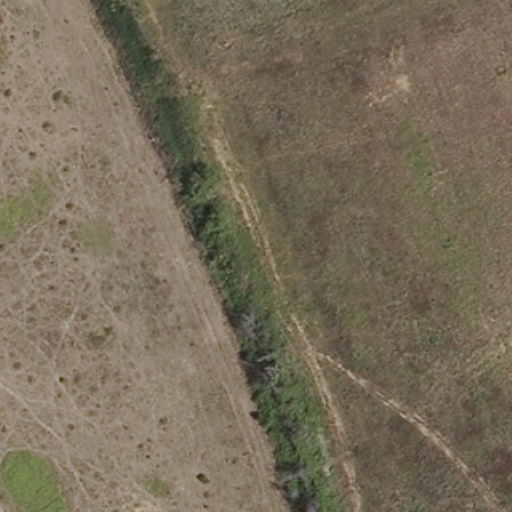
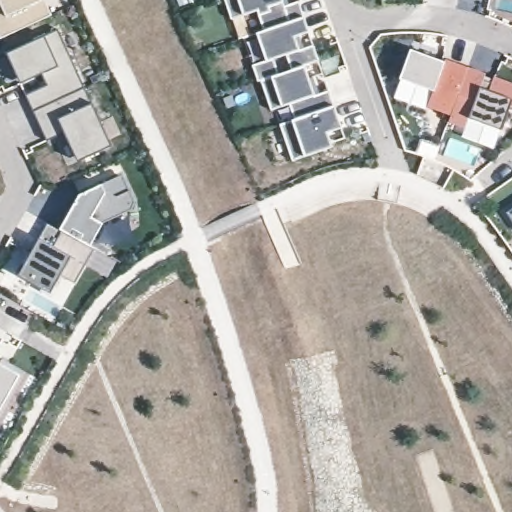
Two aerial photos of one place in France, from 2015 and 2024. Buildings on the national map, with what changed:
new [(44,0),(51,15),(44,19),(0,39),(0,0),(44,0)]
new [(298,1),(304,17),(264,30),(257,11),(231,19),(224,0),(282,0),(284,6),(298,1)]
new [(304,17),(309,34),(295,39),(296,42),(263,53),(256,33),(304,17)]
new [(39,68),(18,78),(7,54),(59,29),(86,88),(33,111),(26,95),(47,85),(39,68)]
new [(300,51),(314,46),(319,61),(258,82),(252,65),(266,60),(263,53),(296,42),(300,51)]
new [(452,113),(428,104),(433,91),(400,79),(410,49),(467,70),(452,113)]
new [(305,66),(315,95),(329,91),(334,106),(295,119),(289,104),(271,110),(261,81),(305,66)]
new [(465,128),(450,121),(452,113),(467,70),(468,67),(512,83),(512,105),(510,104),(500,129),(494,149),(462,139),(465,128)]
new [(42,74),(21,84),(18,78),(39,68),(42,74)]
new [(86,88),(105,130),(74,144),(61,116),(48,122),(40,126),(33,111),(41,108),(86,88)]
new [(339,121),(325,126),(332,147),(292,160),(280,124),(295,119),(334,106),(339,121)]
new [(121,174),(134,201),(131,210),(102,224),(89,247),(60,230),(80,194),(121,174)]
new [(512,221),(506,213),(512,208),(512,221)]
new [(94,249),(85,265),(71,257),(51,294),(18,275),(48,223),(94,249)]
new [(111,249),(106,256),(89,247),(94,239),(111,249)]
new [(75,284),(61,275),(71,257),(85,265),(75,284)]
new [(3,359),(0,364),(20,375),(0,410),(0,358),(3,359)]

